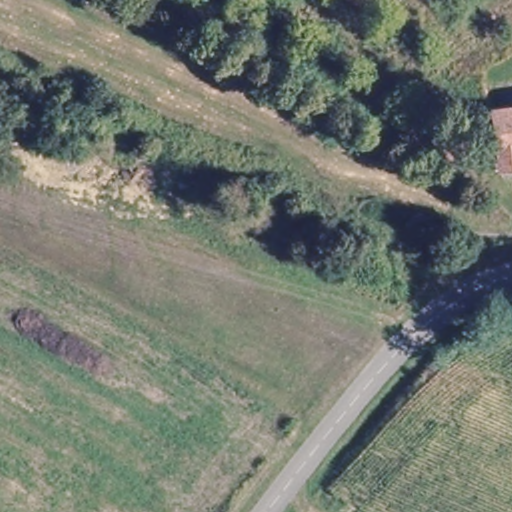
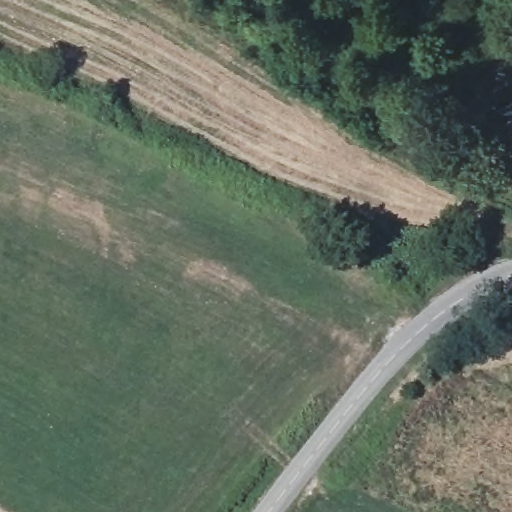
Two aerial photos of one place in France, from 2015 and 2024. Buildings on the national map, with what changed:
unchanged [(490,111),(512,109),(512,175),(497,176),(490,111)]

